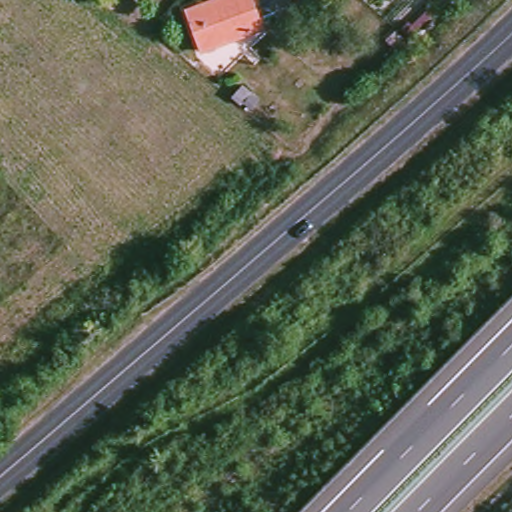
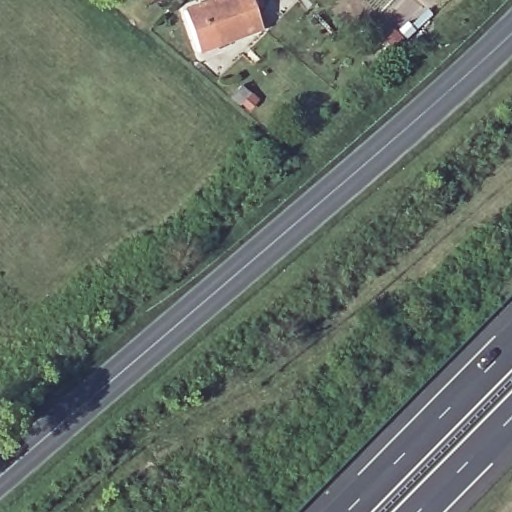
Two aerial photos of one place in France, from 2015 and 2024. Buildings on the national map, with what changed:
unchanged [(200,57),(185,19),(211,9),(208,0),(249,0),(261,32),(200,57)]

